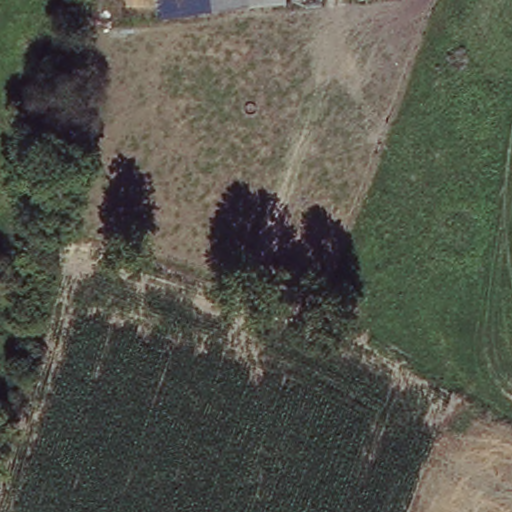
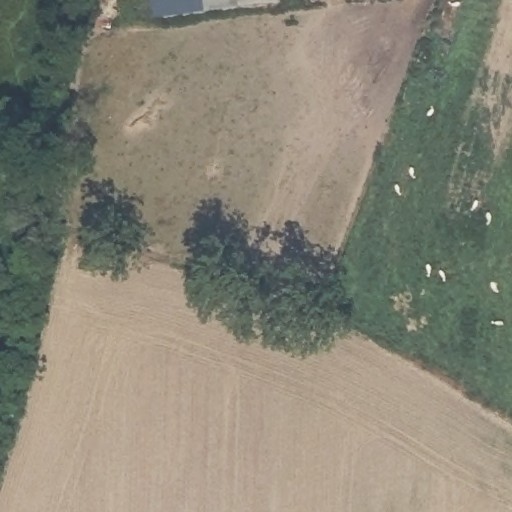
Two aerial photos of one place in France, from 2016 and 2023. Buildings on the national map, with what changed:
unchanged [(210,14),(160,19),(158,0),(209,0),(210,14)]
unchanged [(289,2),(210,14),(209,0),(289,0),(289,2)]

